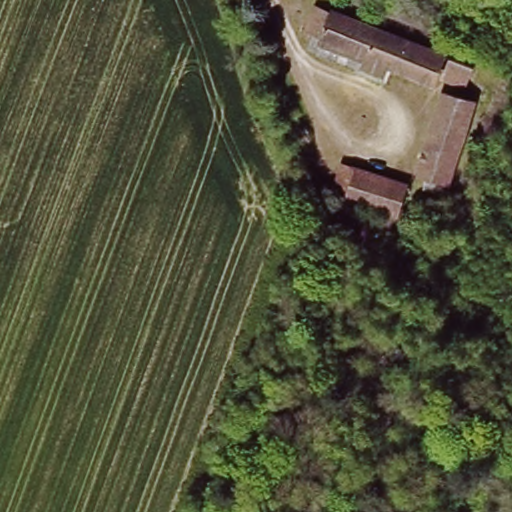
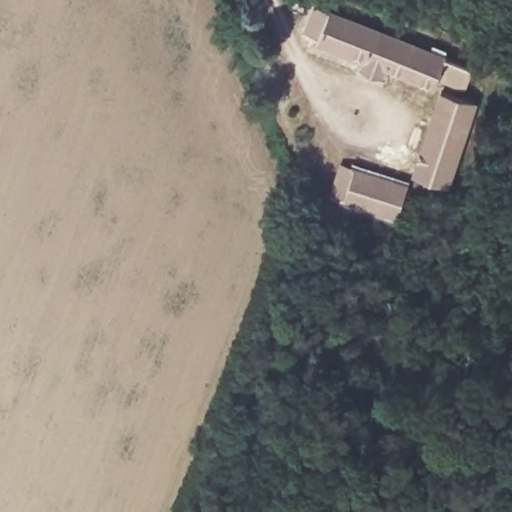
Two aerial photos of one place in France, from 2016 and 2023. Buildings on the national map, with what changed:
unchanged [(464,92),(445,87),(436,83),(434,87),(306,39),(319,7),(439,57),(471,72),(464,92)]
unchanged [(445,95),(476,104),(448,182),(419,172),(445,95)]
unchanged [(341,162),(408,186),(398,216),(331,192),(341,162)]

